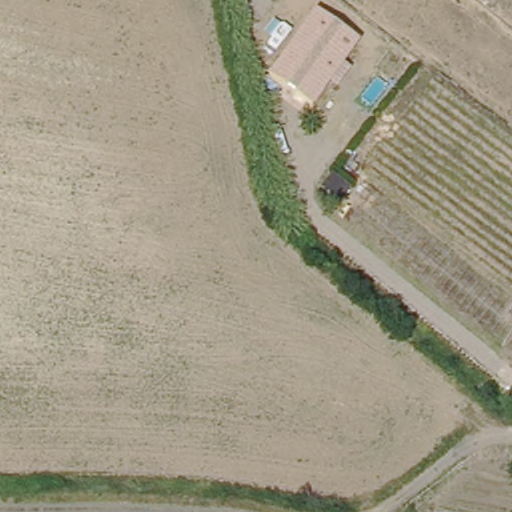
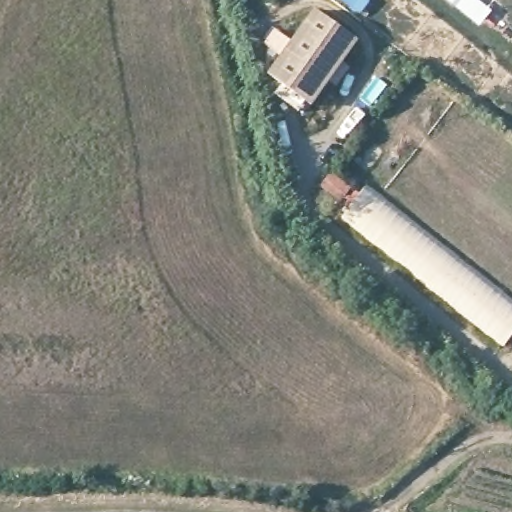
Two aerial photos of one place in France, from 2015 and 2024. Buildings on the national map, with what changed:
new [(276,0),(283,0),(281,4),(276,0)]
new [(481,29),(445,0),(480,0),(494,12),(481,29)]
unchanged [(313,109),(268,76),(315,9),(361,41),(313,109)]
new [(504,343),(344,215),(366,186),(512,304),(512,333),(504,343)]

